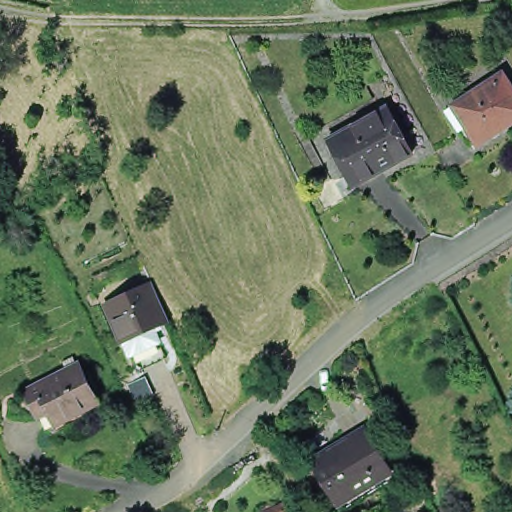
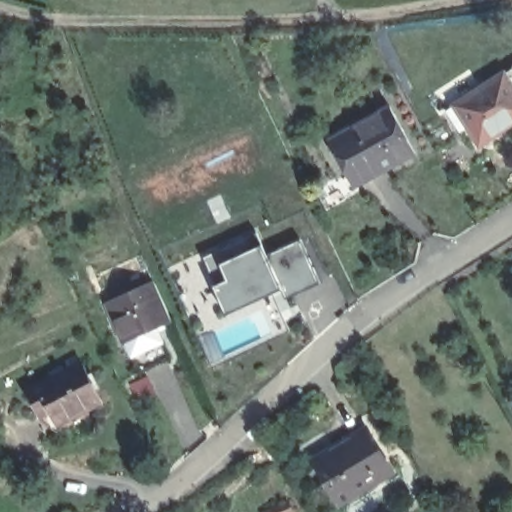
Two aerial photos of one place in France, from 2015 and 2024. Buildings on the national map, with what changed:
unchanged [(512,77),(512,129),(486,146),(475,128),(467,133),(453,112),(511,75),(512,77)]
unchanged [(325,143),(340,135),(386,111),(411,156),(363,182),(350,188),(325,143)]
new [(265,255),(299,239),(318,284),(283,301),(278,291),(222,318),(198,260),(256,233),(265,255)]
unchanged [(140,377),(126,346),(125,347),(106,310),(151,288),(170,325),(153,333),(168,363),(140,377)]
unchanged [(25,385),(30,382),(65,365),(80,358),(100,399),(87,405),(60,418),(49,398),(40,403),(34,405),(25,385)]
unchanged [(340,502),(313,459),(365,428),(391,472),(340,502)]

